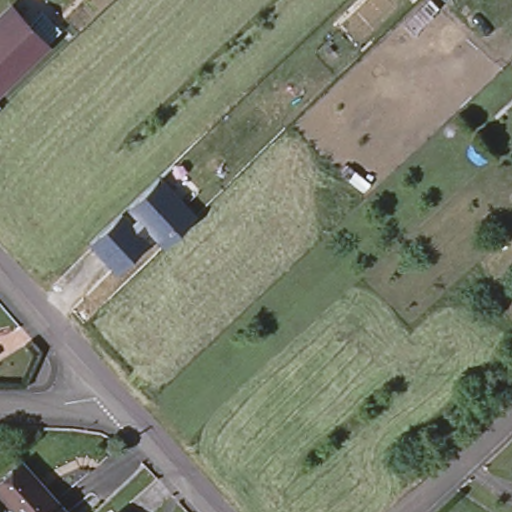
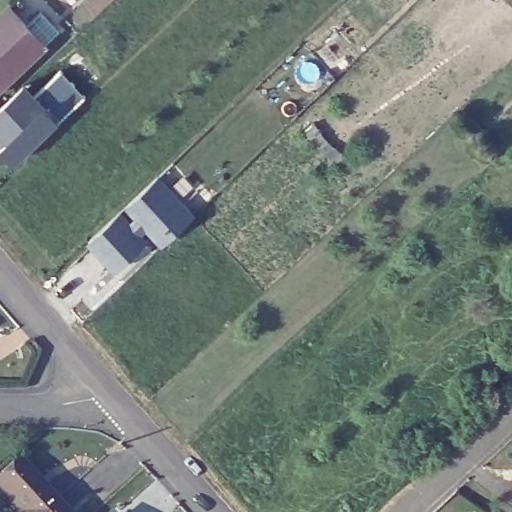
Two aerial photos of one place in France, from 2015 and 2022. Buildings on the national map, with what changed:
unchanged [(0,91),(0,15),(12,4),(48,43),(0,91)]
demolished [(511,87),(497,71),(512,56),(512,86),(511,87)]
new [(0,150),(0,108),(24,85),(33,96),(63,69),(86,95),(58,122),(17,160),(5,146),(0,150)]
unchanged [(199,216),(168,248),(153,235),(116,275),(86,245),(159,174),(199,216)]
unchanged [(14,512),(0,497),(0,476),(13,463),(57,512),(14,512)]

